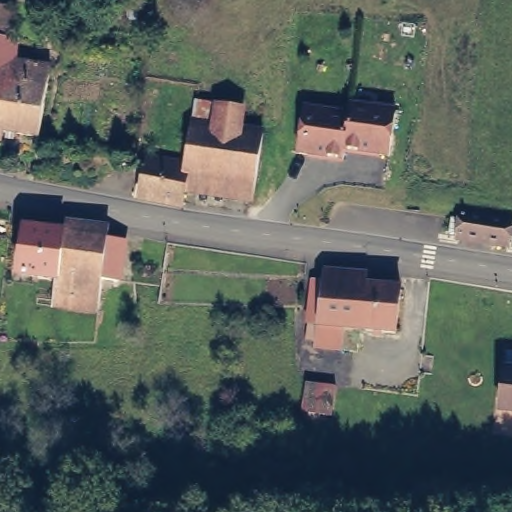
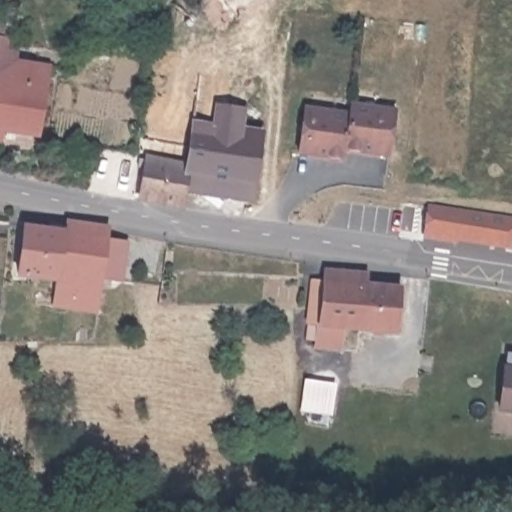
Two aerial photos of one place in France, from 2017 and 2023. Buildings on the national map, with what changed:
unchanged [(15,15),(10,45),(6,67),(50,74),(39,142),(0,136),(0,13),(15,15)]
unchanged [(184,162),(191,119),(214,122),(217,102),(242,106),(240,126),(263,129),(254,182),(186,173),(183,188),(181,201),(140,194),(145,165),(137,164),(138,155),(184,162)]
unchanged [(389,158),(347,152),(345,163),(300,157),(306,107),(351,113),(353,105),(398,110),(389,158)]
unchanged [(252,197),(183,188),(186,173),(254,182),(252,197)]
unchanged [(455,238),(455,235),(448,234),(450,218),(458,219),(459,212),(484,216),(512,220),(512,227),(509,246),(455,238)]
unchanged [(52,301),(56,275),(17,270),(23,223),(108,232),(108,235),(125,237),(120,277),(103,275),(99,303),(98,308),(85,306),(76,305),(52,301)]
unchanged [(400,333),(347,329),(345,351),(320,348),(322,326),(311,325),(316,280),(327,281),(404,288),(400,333)]
unchanged [(500,414),(506,355),(512,356),(512,416),(500,414)]
unchanged [(340,386),(336,416),(306,412),(310,382),(340,386)]

